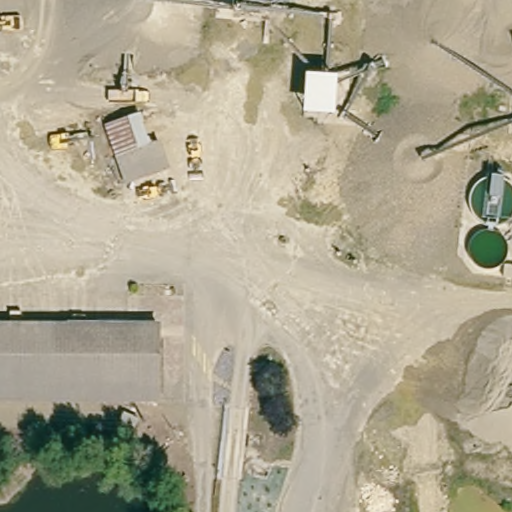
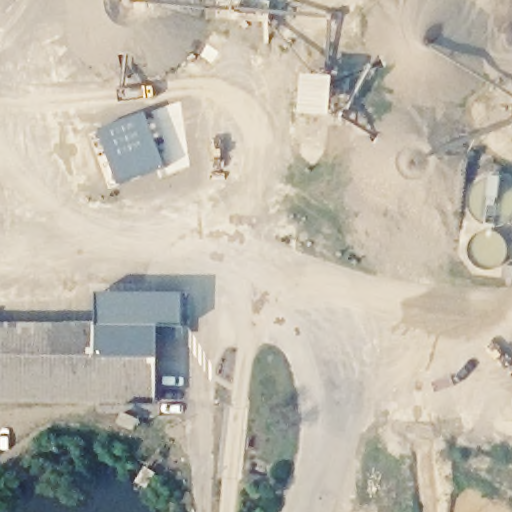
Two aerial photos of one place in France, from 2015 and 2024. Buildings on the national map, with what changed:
unchanged [(124,159),(112,126),(146,114),(157,147),(124,159)]
unchanged [(165,144),(174,168),(132,181),(124,159),(157,147),(165,144)]
new [(99,325),(97,292),(185,293),(187,327),(158,326),(99,325)]
unchanged [(0,400),(0,325),(3,325),(99,325),(99,400),(81,400),(0,400)]
unchanged [(158,326),(158,400),(99,400),(99,325),(158,326)]

